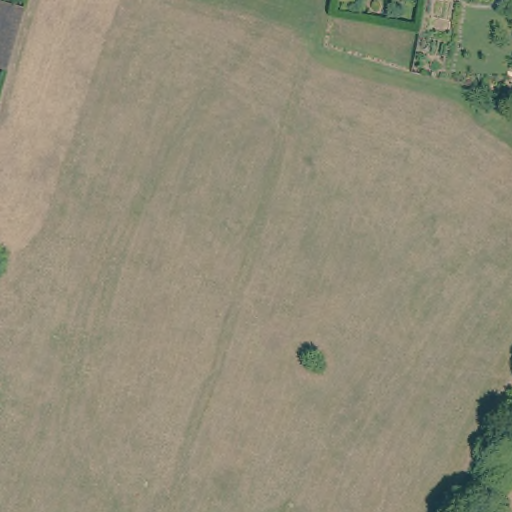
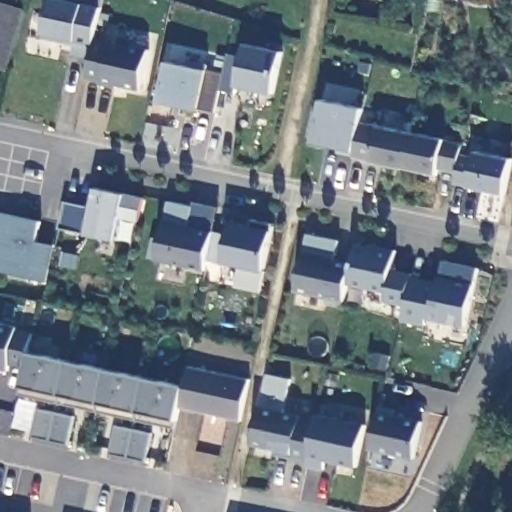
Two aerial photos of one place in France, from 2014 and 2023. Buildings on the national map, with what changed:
new [(117,85),(117,87),(101,84),(102,81),(88,78),(92,59),(73,56),(75,44),(43,37),(50,0),(71,0),(104,0),(103,6),(96,37),(149,49),(141,91),(117,85)]
unchanged [(0,63),(0,16),(1,12),(2,8),(6,9),(25,14),(24,18),(11,67),(0,63)]
new [(274,94),(239,86),(237,93),(221,89),(216,112),(202,107),(201,110),(160,102),(168,61),(188,65),(189,59),(208,63),(208,68),(225,72),(230,52),(244,54),(246,43),(283,51),(274,94)]
new [(470,186),(456,182),(458,172),(440,168),(438,173),(372,160),(354,156),(355,151),(314,143),(323,100),(364,109),(361,121),(379,125),(445,139),(462,142),(461,154),(475,159),(477,151),(512,159),(512,164),(506,193),(470,186)]
new [(139,222),(119,219),(115,240),(87,234),(60,228),(66,201),(92,206),(97,187),(125,194),(143,196),(139,222)]
new [(264,271),(225,262),(224,263),(208,260),(207,269),(150,257),(153,238),(161,241),(169,200),(193,206),(194,201),(218,206),(214,232),(228,238),(232,220),(273,230),(264,271)]
new [(47,281),(0,271),(0,213),(41,222),(37,242),(54,246),(47,281)]
new [(467,327),(428,319),(426,326),(403,321),(406,306),(385,300),(386,293),(349,284),(343,306),(327,303),(328,298),(296,292),(308,233),(339,239),(336,259),(352,262),(356,243),(379,247),(379,246),(397,249),(393,269),(413,273),(412,276),(439,283),(441,277),(444,260),(479,268),(467,327)]
new [(241,419),(181,406),(178,420),(174,427),(21,394),(22,386),(26,369),(9,364),(8,371),(0,369),(0,323),(18,326),(17,330),(33,332),(29,352),(184,386),(189,366),(250,380),(241,419)]
new [(358,467),(327,460),(325,470),(307,465),(308,462),(277,455),(279,449),(252,444),(260,406),(309,417),(318,413),(366,423),(358,467)]
new [(67,445),(49,441),(30,436),(36,408),(55,412),(73,416),(67,445)]
new [(416,459),(371,450),(379,411),(423,421),(416,459)]
new [(143,461),(124,457),(106,453),(112,424),(131,428),(149,432),(143,461)]

